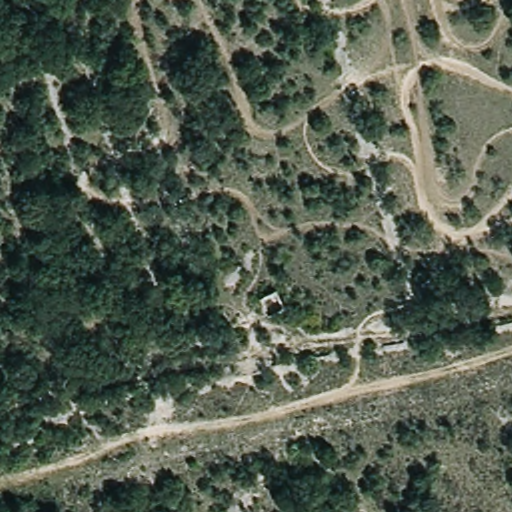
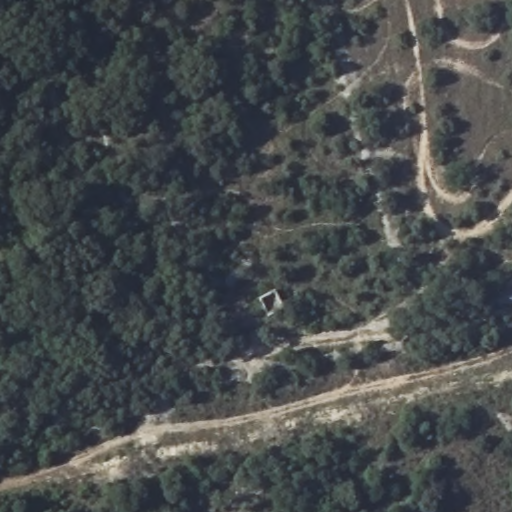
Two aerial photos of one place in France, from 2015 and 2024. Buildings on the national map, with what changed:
unchanged [(274,289),(285,309),(269,316),(258,297),(274,289)]

